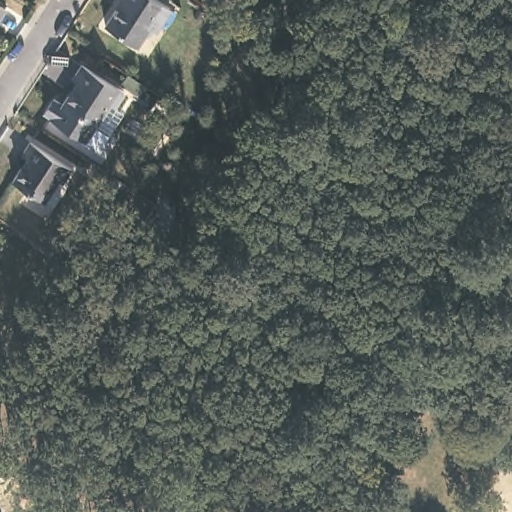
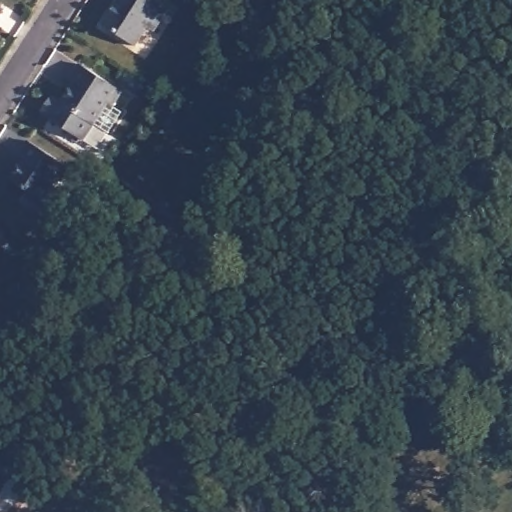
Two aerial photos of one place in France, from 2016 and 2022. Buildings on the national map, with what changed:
unchanged [(170,9),(155,31),(149,28),(136,47),(105,27),(123,0),(157,0),(170,9)]
unchanged [(3,11),(0,16),(0,9),(3,11)]
unchanged [(124,91),(115,105),(109,102),(95,125),(64,104),(79,81),(74,79),(83,65),(124,91)]
unchanged [(75,168),(66,182),(62,180),(46,202),(16,182),(32,160),(27,155),(37,141),(75,168)]

